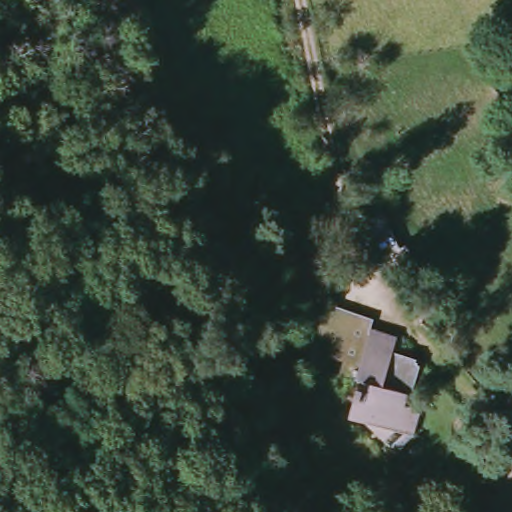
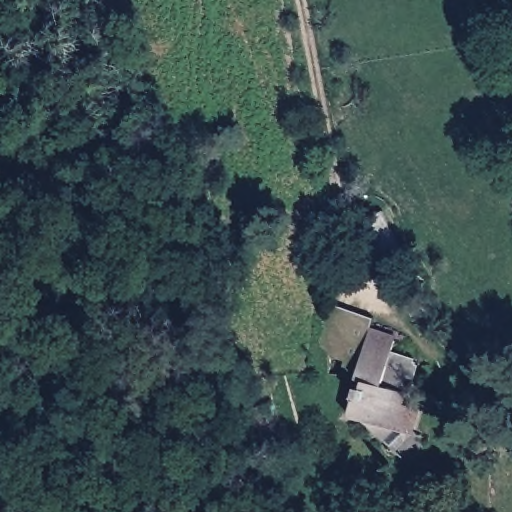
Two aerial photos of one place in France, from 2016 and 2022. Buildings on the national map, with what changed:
unchanged [(380,434),(371,424),(367,420),(350,415),(358,385),(363,387),(365,380),(357,378),(358,377),(339,375),(345,357),(338,355),(340,354),(318,347),(330,304),(374,318),(370,332),(395,340),(392,354),(416,361),(404,403),(415,406),(413,411),(408,428),(407,432),(392,447),(380,434)]
unchanged [(250,428),(245,409),(264,404),(270,402),(278,432),(268,434),(253,438),(250,428)]

